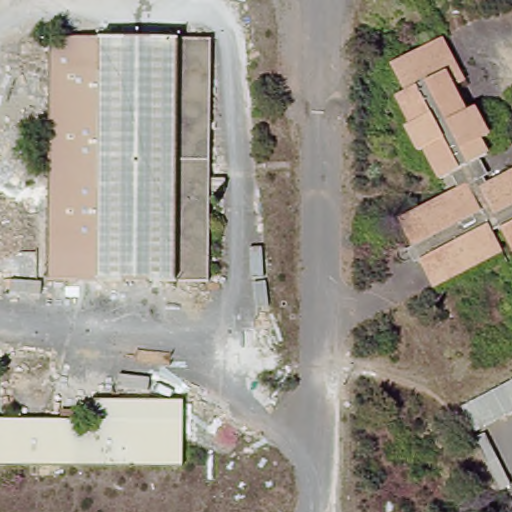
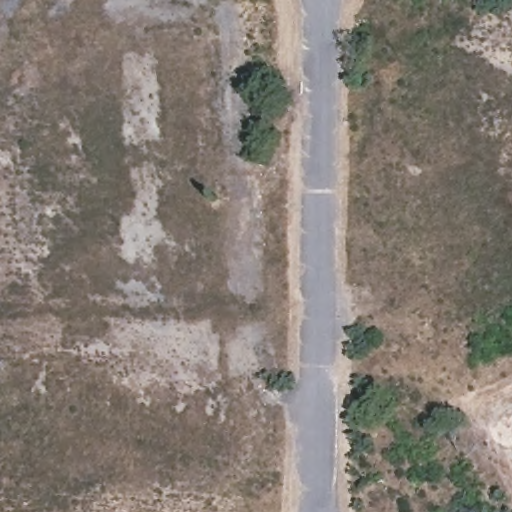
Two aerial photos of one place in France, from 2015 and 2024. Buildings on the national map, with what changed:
demolished [(464,80),(453,86),(467,110),(473,106),(489,135),(480,140),(487,152),(477,159),(485,175),(481,177),(484,182),(512,167),(512,254),(499,230),(492,234),(502,251),(432,290),(415,260),(413,262),(405,250),(406,249),(390,221),(456,185),(450,174),(438,180),(420,149),(415,151),(402,127),(408,124),(393,97),(403,91),(389,65),(439,37),(464,80)]
demolished [(208,45),(206,287),(47,285),(49,42),(208,45)]
demolished [(92,420),(92,401),(181,402),(181,466),(0,464),(0,419),(92,420)]

